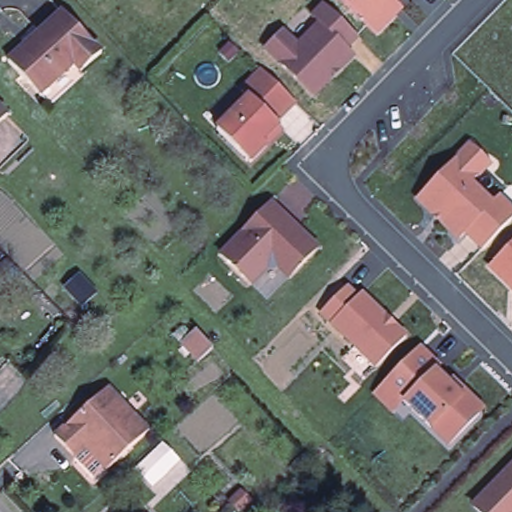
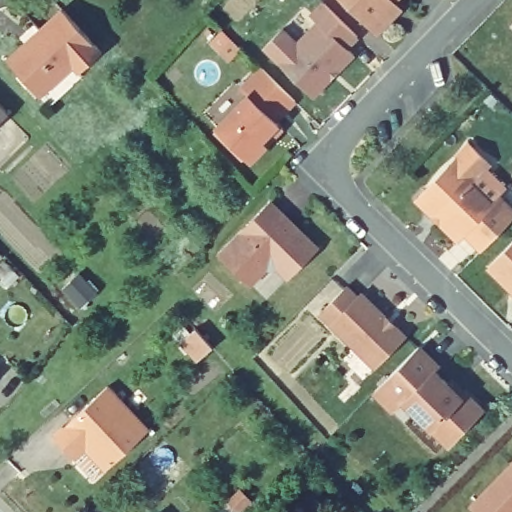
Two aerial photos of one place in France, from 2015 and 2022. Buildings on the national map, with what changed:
unchanged [(375,40),(334,0),(401,0),(392,9),(400,15),(394,20),(375,40)]
unchanged [(355,36),(356,37),(345,48),(352,56),(312,96),(263,49),(282,30),(297,44),(317,23),(310,16),(322,4),(355,36)]
unchanged [(98,51),(44,100),(7,59),(25,41),(31,36),(60,10),(98,51)]
unchanged [(265,150),(249,166),(215,133),(247,101),(240,94),(260,73),(294,106),(275,126),(277,129),(282,133),(265,150)]
unchanged [(7,114),(0,120),(0,107),(7,114)]
unchanged [(471,147),(488,164),(469,184),(490,205),(497,198),(512,212),(512,219),(505,227),(482,251),(464,234),(457,241),(441,224),(432,216),(417,201),(471,147)]
unchanged [(291,222),(287,226),(297,235),(300,231),(317,248),(287,278),(277,267),(266,269),(250,284),(220,254),(271,202),(291,222)]
unchanged [(512,242),(512,291),(487,268),(512,242)]
unchanged [(405,337),(375,368),(320,314),(345,287),(357,298),(360,294),(387,320),(383,325),(387,328),(391,324),(405,337)]
unchanged [(192,361),(175,343),(190,329),(205,346),(207,347),(192,361)]
unchanged [(478,415),(448,446),(414,413),(383,383),(418,347),(439,367),(435,372),(447,384),(452,380),(470,397),(478,406),(478,415)]
unchanged [(71,448),(56,431),(110,381),(152,426),(108,466),(107,465),(96,475),(71,448)]
unchanged [(163,440),(181,461),(151,489),(135,467),(163,440)]
unchanged [(472,506),(512,466),(512,512),(478,512),(472,506)]
unchanged [(240,496),(250,507),(244,512),(235,512),(229,506),(240,496)]
unchanged [(117,511),(118,512),(115,512),(117,511)]

